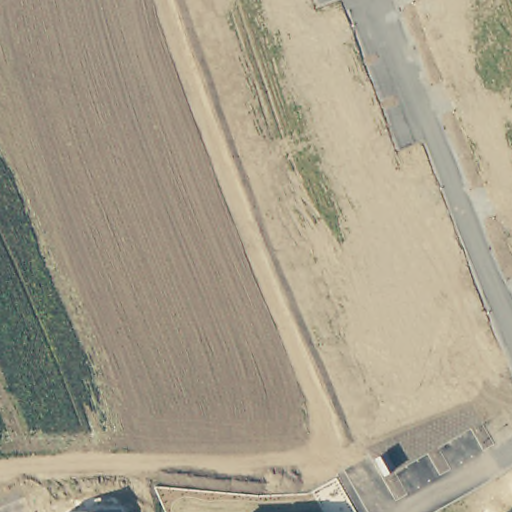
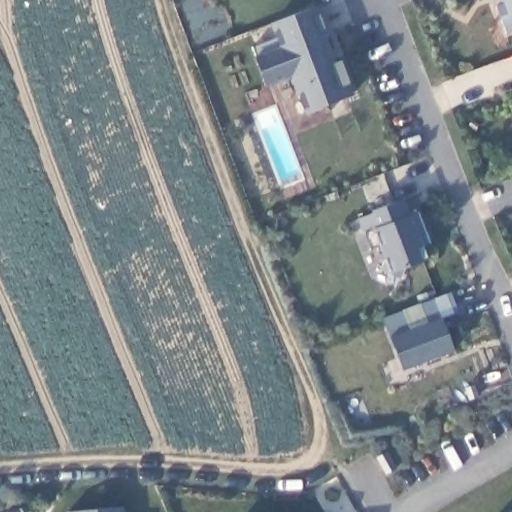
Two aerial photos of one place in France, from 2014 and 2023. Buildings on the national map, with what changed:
new [(500,19),(493,0),(512,0),(512,15),(500,19)]
new [(275,40),(270,22),(319,5),(354,97),(304,114),(291,79),(263,88),(249,48),(275,40)]
unchanged [(403,203),(408,216),(416,212),(428,246),(421,248),(427,261),(387,274),(373,229),(359,232),(357,220),(403,203)]
new [(459,313),(443,319),(455,353),(402,372),(381,317),(449,293),(459,313)]
unchanged [(123,512),(75,512),(123,509),(123,512)]
unchanged [(508,512),(512,510),(512,512),(508,512)]

